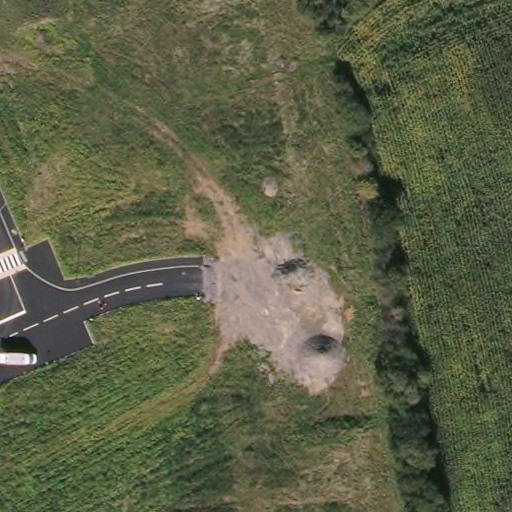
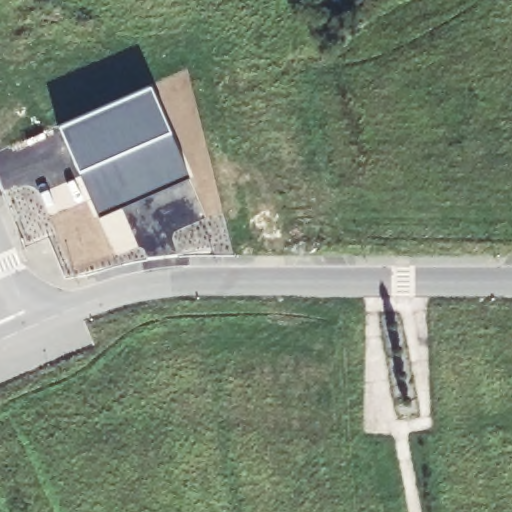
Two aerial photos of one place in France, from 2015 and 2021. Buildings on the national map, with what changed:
new [(152,86),(192,177),(100,217),(60,125),(152,86)]

